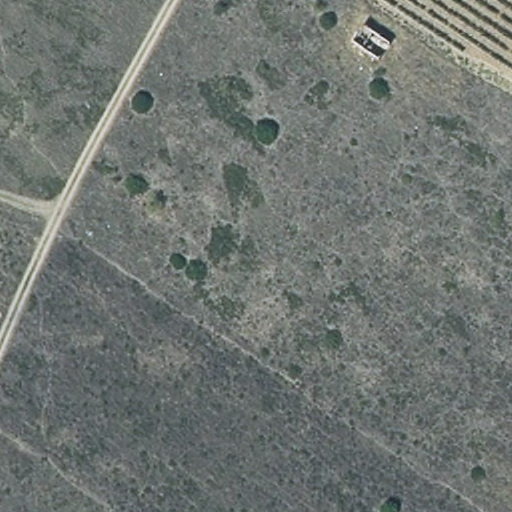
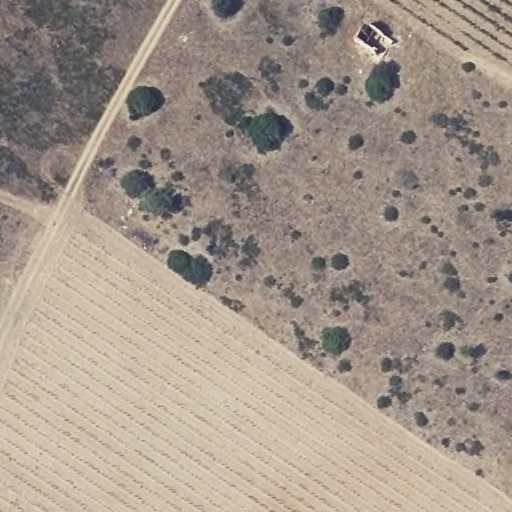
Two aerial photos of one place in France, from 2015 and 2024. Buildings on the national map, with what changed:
unchanged [(396,36),(383,61),(351,41),(368,20),(396,36)]

